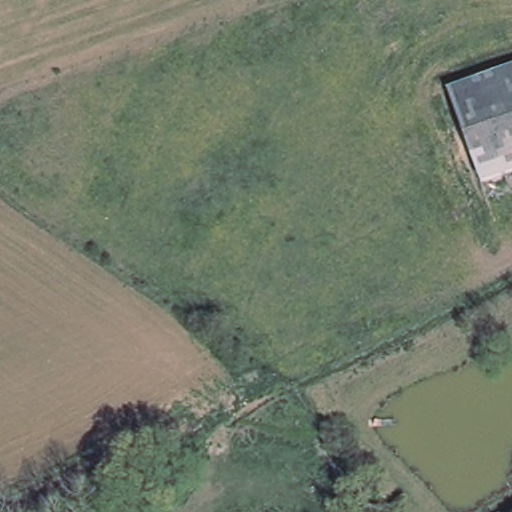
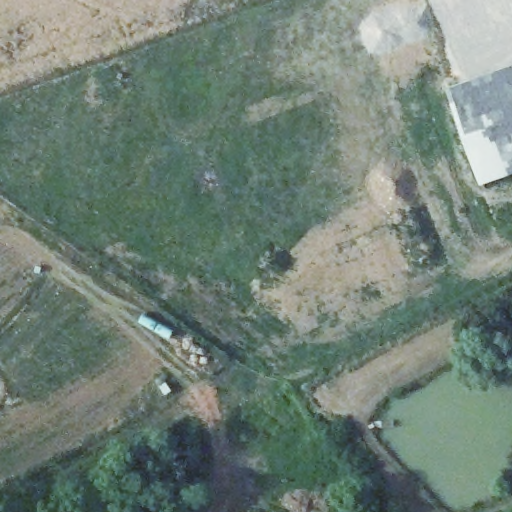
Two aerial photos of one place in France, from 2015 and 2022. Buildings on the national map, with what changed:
unchanged [(482,179),(447,85),(512,61),(512,168),(482,179)]

